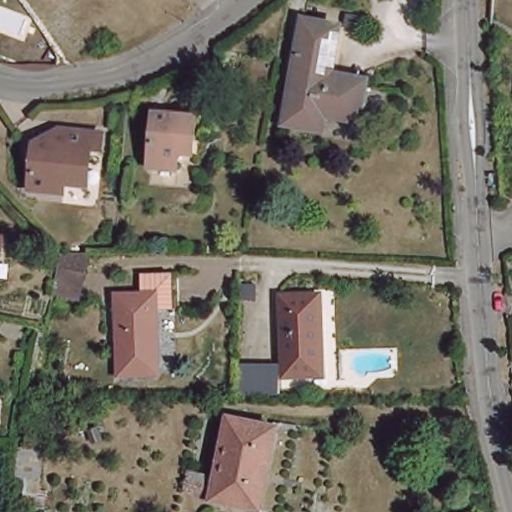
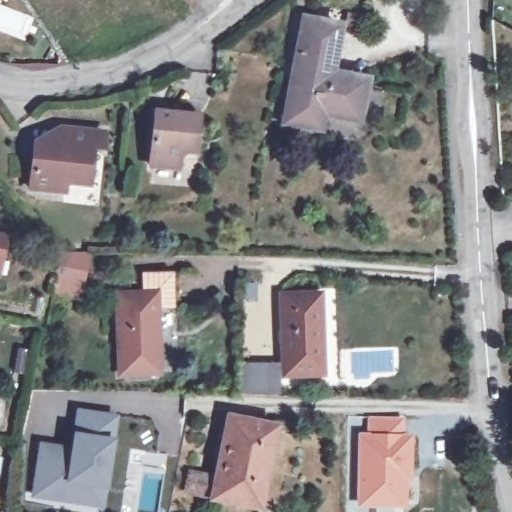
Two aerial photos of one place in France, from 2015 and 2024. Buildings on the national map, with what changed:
unchanged [(303,120),(279,116),(299,13),(334,20),(325,67),(360,74),(353,114),(318,107),(316,114),(314,123),(303,120)]
unchanged [(193,152),(184,151),(178,157),(177,167),(149,165),(154,110),(198,114),(193,152)]
unchanged [(83,178),(64,176),(64,187),(31,184),(35,136),(58,139),(59,122),(103,126),(101,144),(92,144),(88,179),(83,178)]
unchanged [(0,249),(0,232),(3,232),(0,249)]
unchanged [(51,290),(53,282),(60,251),(88,251),(80,288),(78,297),(51,290)]
unchanged [(141,303),(141,283),(177,281),(179,317),(156,318),(159,382),(119,384),(116,304),(141,303)]
unchanged [(316,292),(316,309),(319,310),(322,372),(284,374),(281,294),(316,292)]
unchanged [(268,365),(268,395),(238,393),(238,390),(238,365),(268,365)]
new [(68,445),(75,408),(117,415),(110,438),(114,438),(106,488),(101,487),(103,508),(31,497),(39,441),(68,445)]
unchanged [(276,426),(259,507),(211,497),(228,416),(276,426)]
new [(401,420),(400,440),(409,440),(408,471),(403,471),(402,507),(359,505),(361,438),(371,439),(371,419),(401,420)]
demolished [(40,449),(38,478),(16,477),(18,447),(40,449)]

